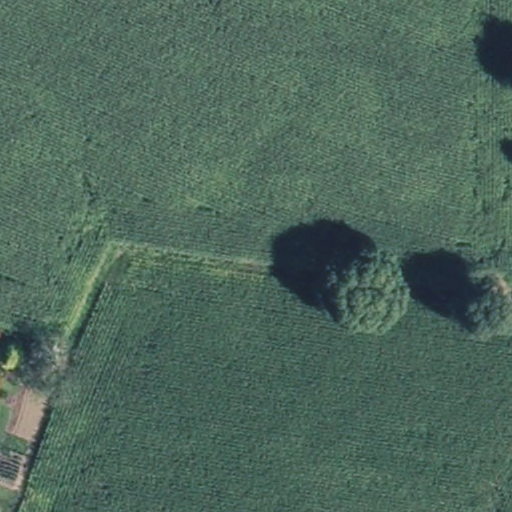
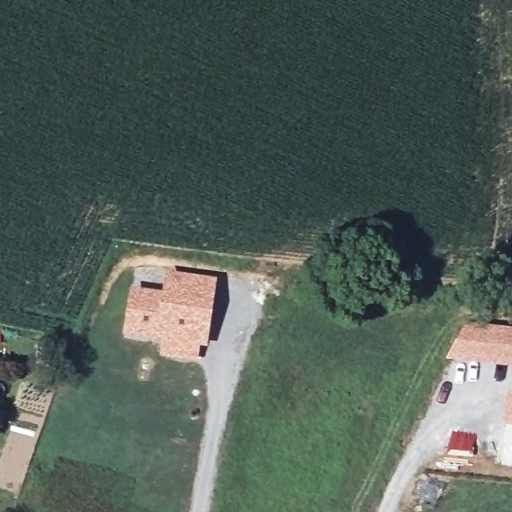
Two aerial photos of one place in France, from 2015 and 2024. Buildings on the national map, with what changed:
new [(162,341),(123,335),(130,288),(163,292),(166,272),(217,280),(208,347),(201,346),(198,361),(160,356),(162,341)]
new [(446,360),(466,323),(512,329),(512,368),(446,360)]
new [(506,394),(512,395),(512,426),(501,425),(506,394)]

